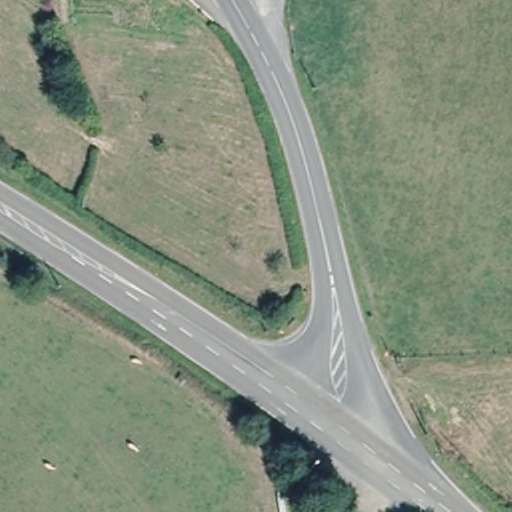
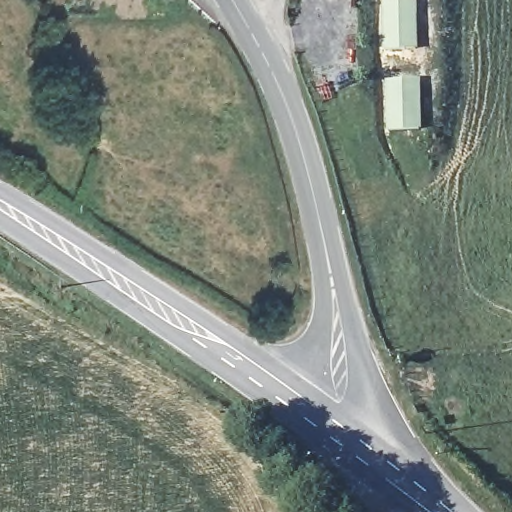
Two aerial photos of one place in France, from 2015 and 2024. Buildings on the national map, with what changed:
new [(419,49),(382,49),(381,0),(418,0),(419,49)]
new [(421,76),(422,129),(386,130),(385,79),(421,76)]

